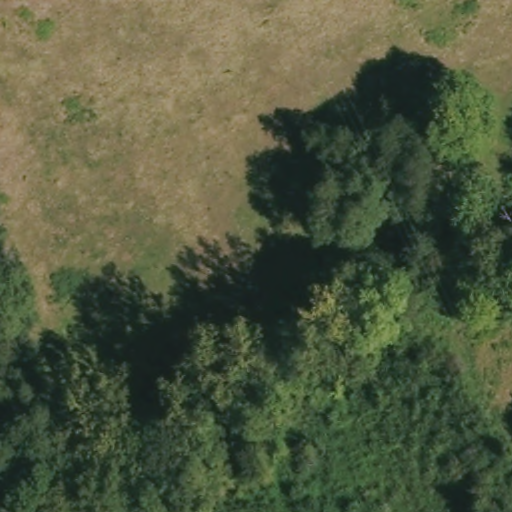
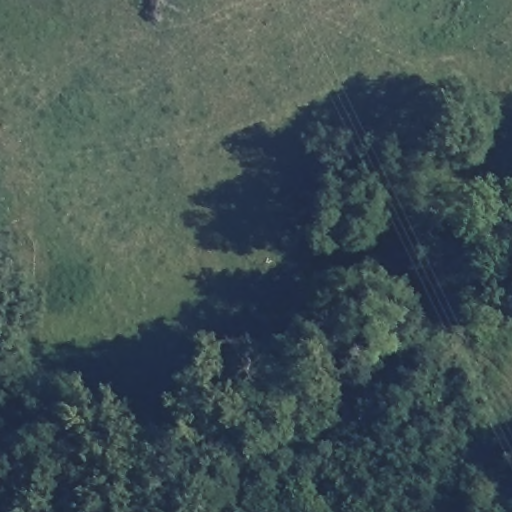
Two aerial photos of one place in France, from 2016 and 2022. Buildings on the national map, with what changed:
[]

